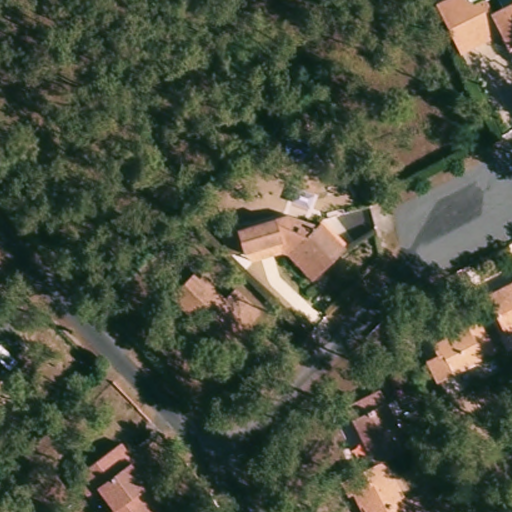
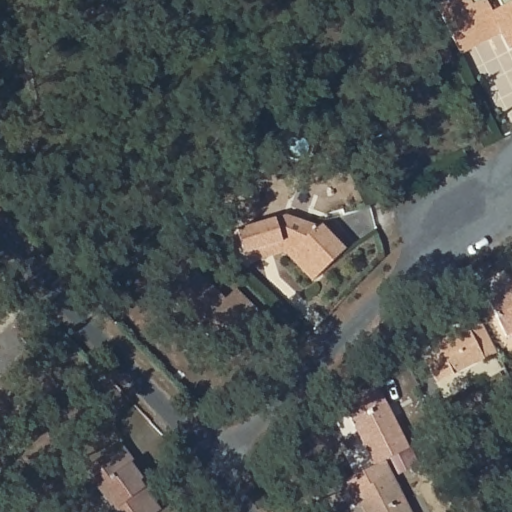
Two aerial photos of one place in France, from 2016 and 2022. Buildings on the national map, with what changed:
unchanged [(460,53),(436,3),(443,0),(512,0),(512,48),(508,50),(500,33),(460,53)]
unchanged [(285,253),(251,264),(239,256),(230,230),(282,215),(315,225),(318,222),(341,245),(317,269),(309,277),(285,253)]
unchanged [(201,330),(197,332),(192,332),(188,331),(184,329),(183,325),(183,320),(185,315),(167,298),(194,271),(222,299),(233,288),(257,313),(229,342),(221,350),(201,330)]
unchanged [(501,336),(481,296),(512,281),(512,331),(501,336)]
unchanged [(426,369),(437,363),(434,356),(434,353),(438,349),(483,327),(498,357),(452,379),(435,387),(426,369)]
unchanged [(344,406),(378,390),(408,447),(384,459),(373,465),(344,406)]
unchanged [(134,461),(130,464),(142,480),(150,491),(147,493),(159,511),(158,512),(111,512),(114,510),(97,488),(87,495),(74,477),(121,443),(134,461)]
unchanged [(362,505),(359,506),(353,495),(349,497),(341,481),(373,465),(384,459),(410,512),(366,512),(362,505)]

